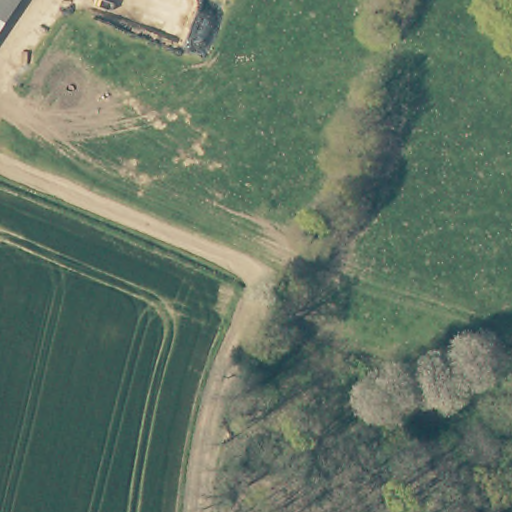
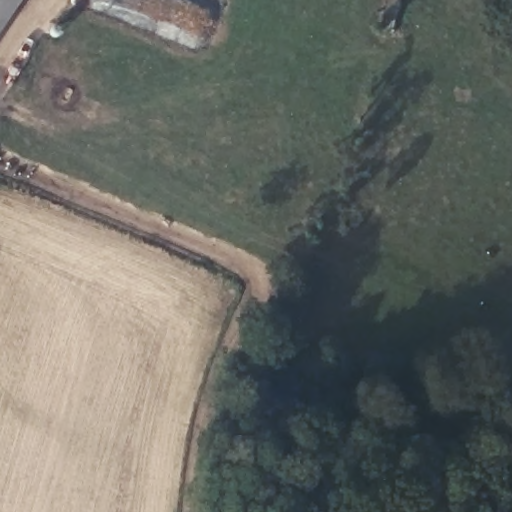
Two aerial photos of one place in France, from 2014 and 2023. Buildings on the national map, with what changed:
unchanged [(5,0),(0,7),(0,0),(5,0)]

